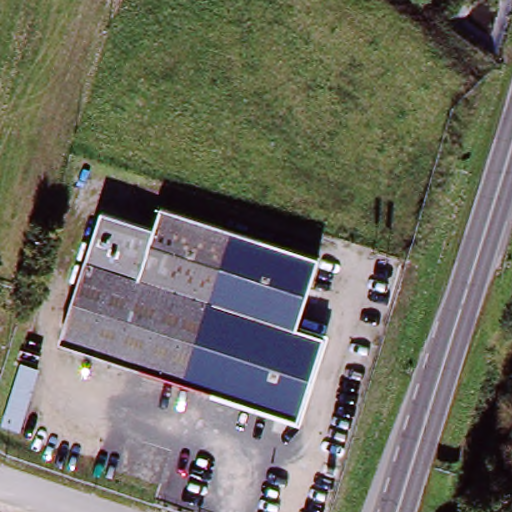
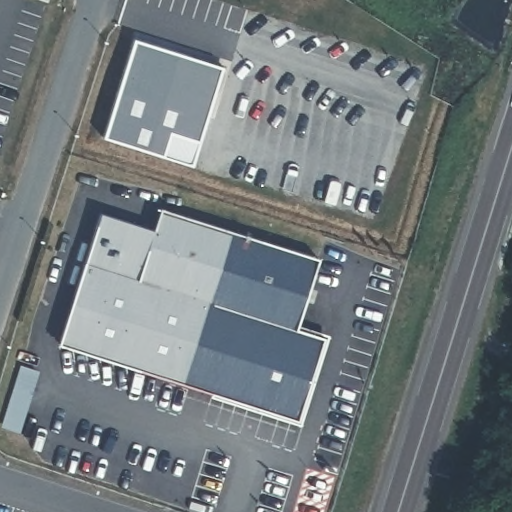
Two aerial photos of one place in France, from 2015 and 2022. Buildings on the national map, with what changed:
new [(222,67),(192,164),(105,137),(134,40),(222,67)]
unchanged [(315,256),(295,327),(321,335),(296,418),(58,347),(98,216),(150,232),(157,209),(315,256)]

